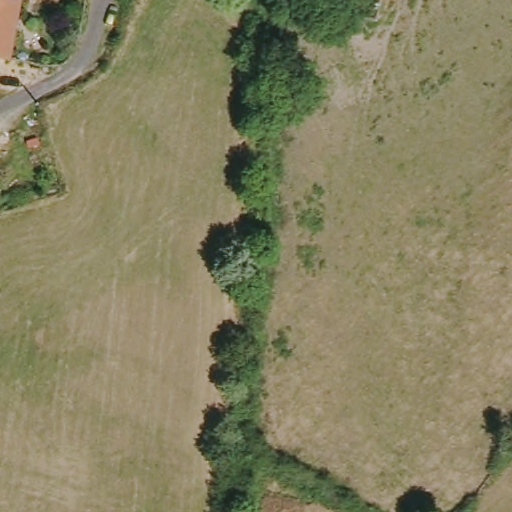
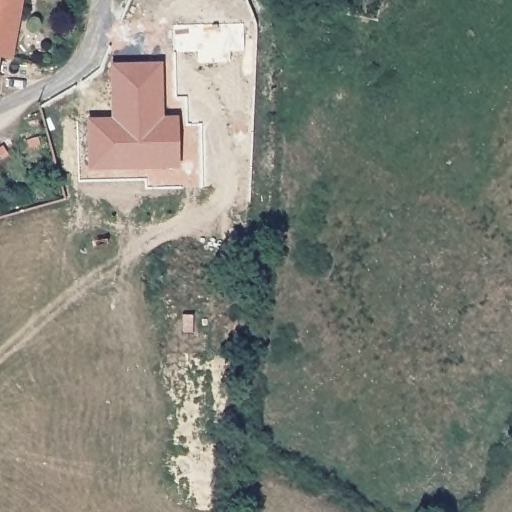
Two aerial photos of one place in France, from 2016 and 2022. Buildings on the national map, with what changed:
unchanged [(24,0),(19,24),(13,62),(6,61),(0,60),(0,0),(24,0)]
unchanged [(6,61),(0,89),(0,60),(6,61)]
new [(121,119),(121,109),(118,109),(115,65),(161,63),(164,117),(178,116),(181,162),(96,167),(93,121),(121,119)]

